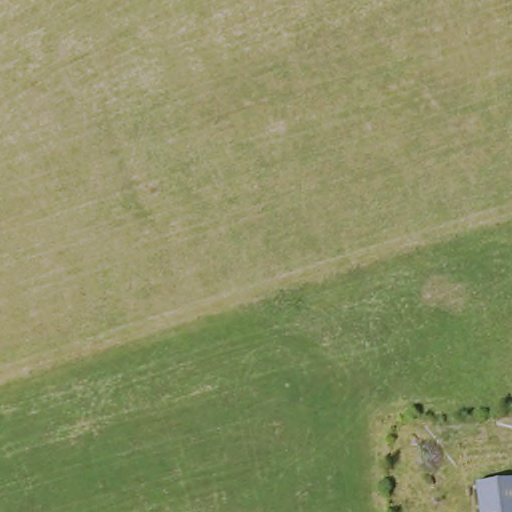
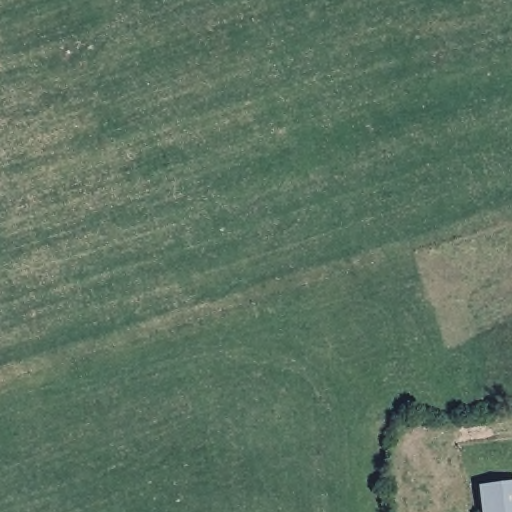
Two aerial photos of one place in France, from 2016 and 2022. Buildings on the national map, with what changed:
unchanged [(512,484),(512,512),(476,512),(472,487),(512,481),(512,484)]

